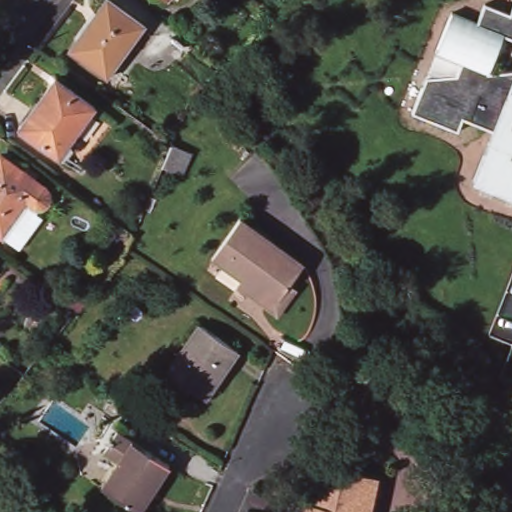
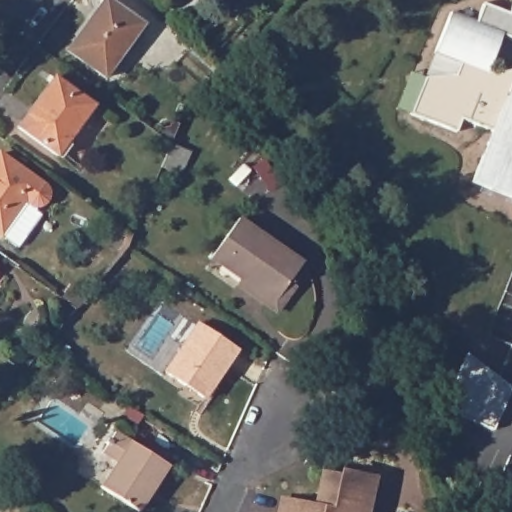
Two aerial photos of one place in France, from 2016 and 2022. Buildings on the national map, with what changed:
unchanged [(105,0),(140,26),(105,75),(68,48),(105,0)]
unchanged [(460,77),(465,63),(439,54),(455,12),(480,22),(486,4),(512,14),(512,37),(506,34),(491,74),(512,72),(512,197),(478,185),(497,133),(467,121),(462,133),(416,116),(429,80),(460,77)]
unchanged [(51,74),(90,102),(95,110),(94,115),(91,118),(82,118),(80,118),(58,150),(18,122),(51,74)]
unchanged [(167,146),(186,154),(177,176),(159,169),(167,146)]
unchanged [(1,162),(41,191),(7,240),(0,235),(0,165),(1,162)]
unchanged [(207,260),(235,221),(297,265),(284,283),(291,287),(271,315),(234,289),(239,282),(207,260)]
unchanged [(194,326),(232,350),(200,401),(161,377),(194,326)]
new [(498,429),(465,414),(463,409),(472,388),(459,382),(472,352),(512,384),(512,398),(506,411),(498,429)]
unchanged [(113,464),(100,456),(114,435),(167,467),(137,512),(131,512),(97,491),(113,464)]
unchanged [(279,496),(310,506),(321,471),(346,480),(348,474),(375,481),(365,512),(274,512),(279,496)]

